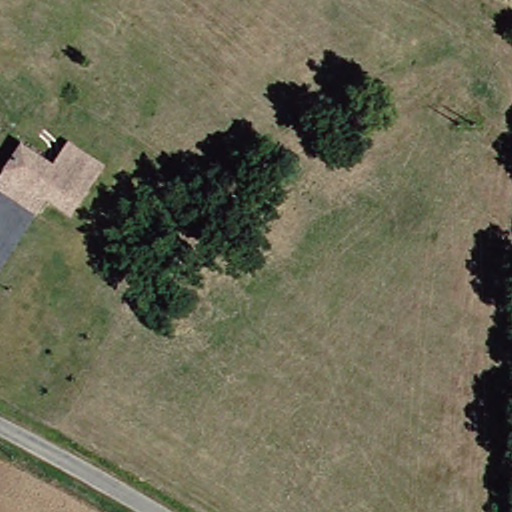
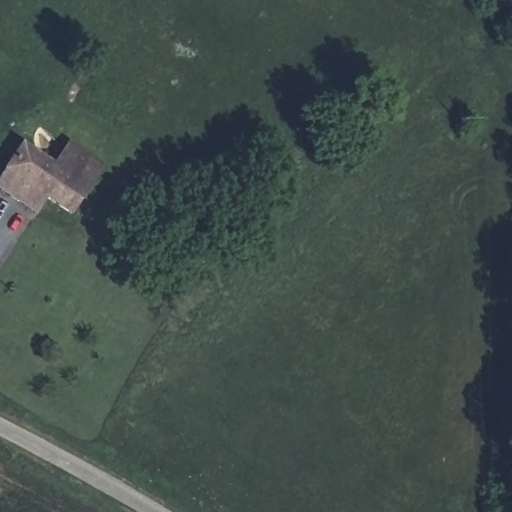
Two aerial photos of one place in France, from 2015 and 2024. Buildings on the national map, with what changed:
unchanged [(0,193),(0,160),(13,141),(46,163),(63,142),(97,167),(60,215),(37,197),(26,212),(0,193)]

